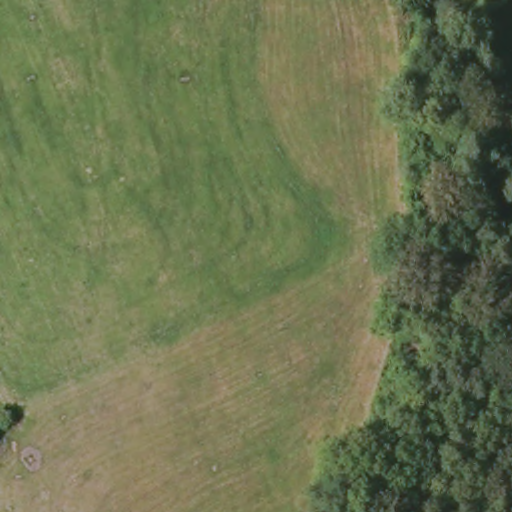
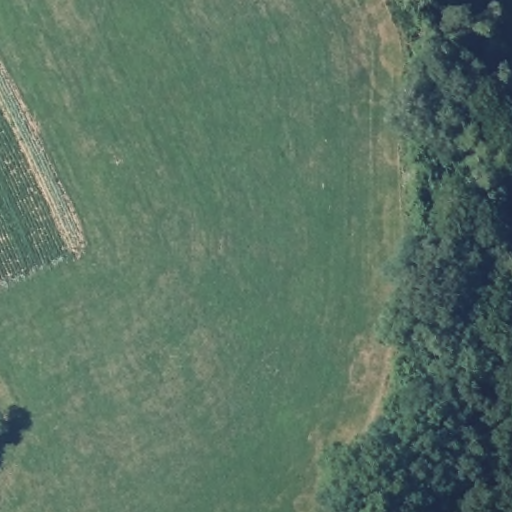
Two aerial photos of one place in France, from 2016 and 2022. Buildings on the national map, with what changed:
[]

